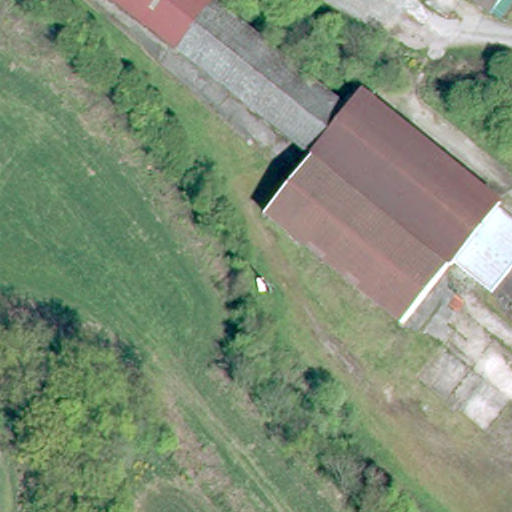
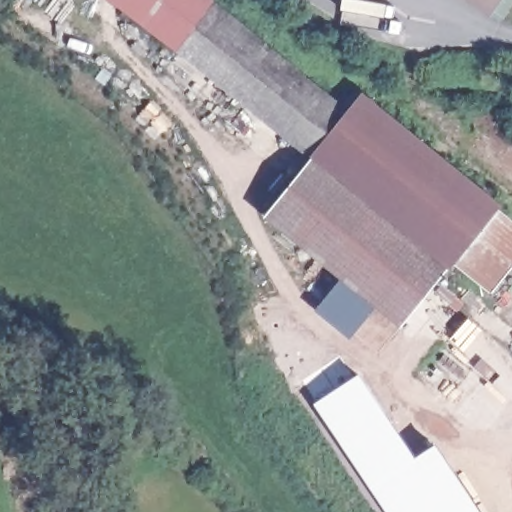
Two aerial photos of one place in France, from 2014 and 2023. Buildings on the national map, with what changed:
unchanged [(116,0),(216,0),(339,100),(355,82),(427,142),(499,200),(496,205),(454,257),(452,260),(449,262),(313,155),(184,52),(116,0)]
unchanged [(482,0),(497,0),(492,6),(482,0)]
unchanged [(264,215),(313,155),(449,262),(400,322),(264,215)]
unchanged [(512,217),(512,264),(492,288),(454,257),(496,205),(512,217)]
new [(356,378),(413,461),(434,448),(476,512),(385,512),(314,406),(356,378)]

